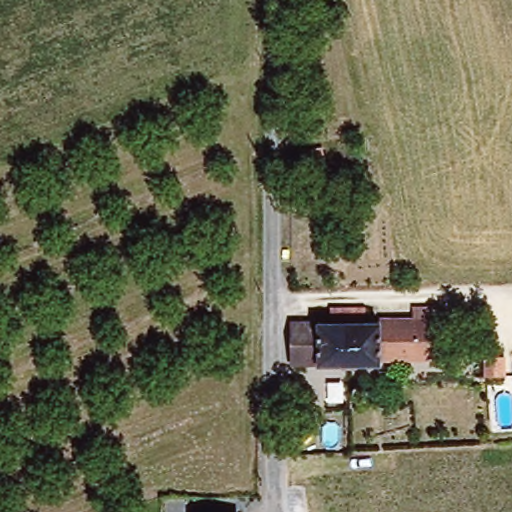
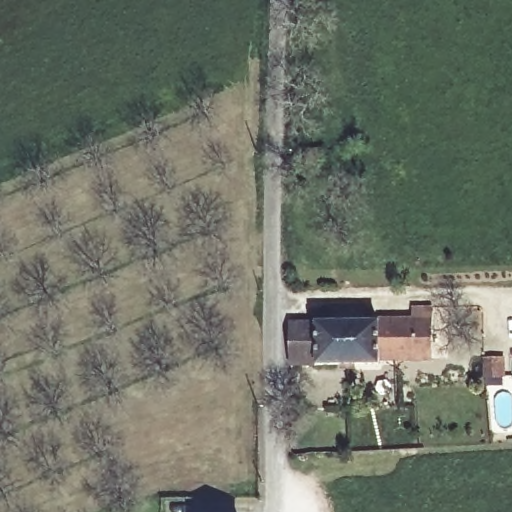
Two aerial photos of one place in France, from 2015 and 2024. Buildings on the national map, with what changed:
unchanged [(378,360),(378,366),(350,367),(346,311),(361,310),(361,325),(411,322),(411,308),(429,308),(433,357),(378,360)]
unchanged [(292,370),(289,327),(329,326),(329,312),(346,311),(350,367),(292,370)]
unchanged [(153,509),(153,492),(178,492),(178,510),(153,509)]

